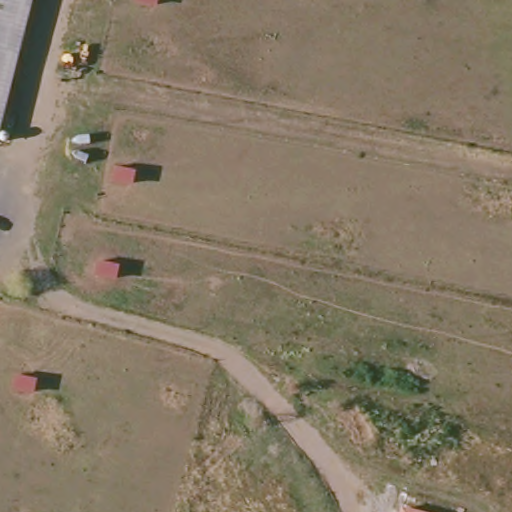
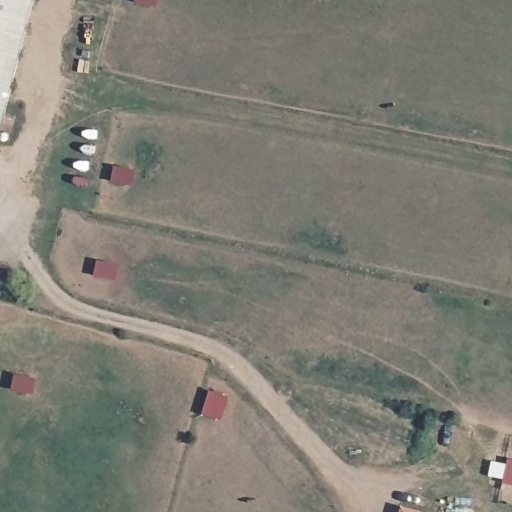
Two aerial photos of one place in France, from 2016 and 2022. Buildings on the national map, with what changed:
unchanged [(0,129),(0,0),(32,0),(0,129)]
unchanged [(423,512),(400,512),(402,506),(423,512)]

